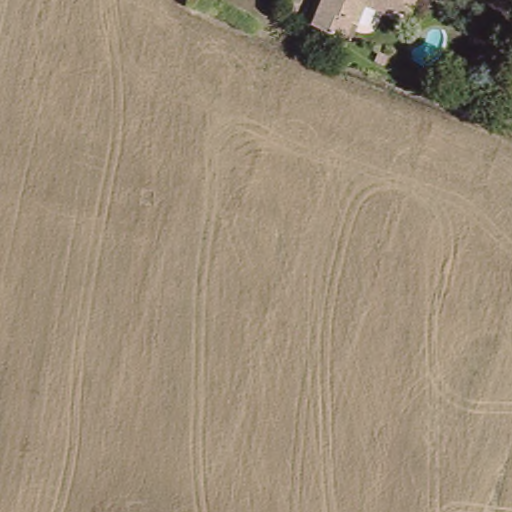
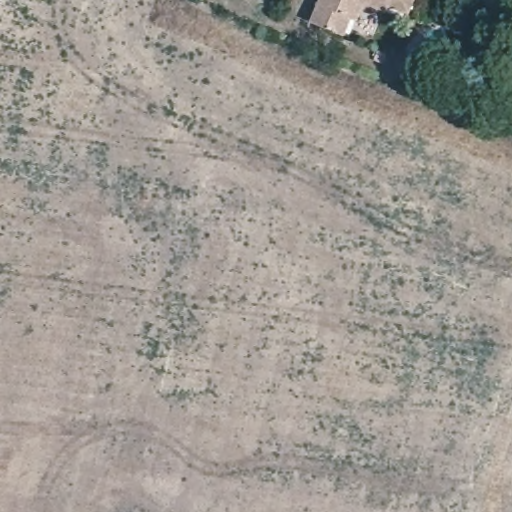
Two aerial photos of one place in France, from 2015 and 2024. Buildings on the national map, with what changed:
unchanged [(341,40),(309,25),(321,0),(418,0),(408,21),(387,12),(384,17),(364,7),(356,25),(350,22),(341,40)]

